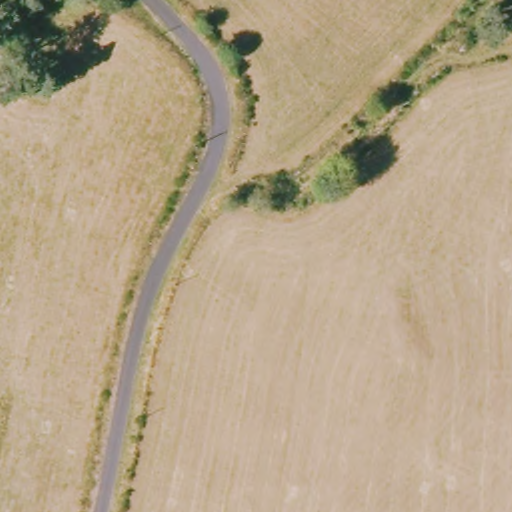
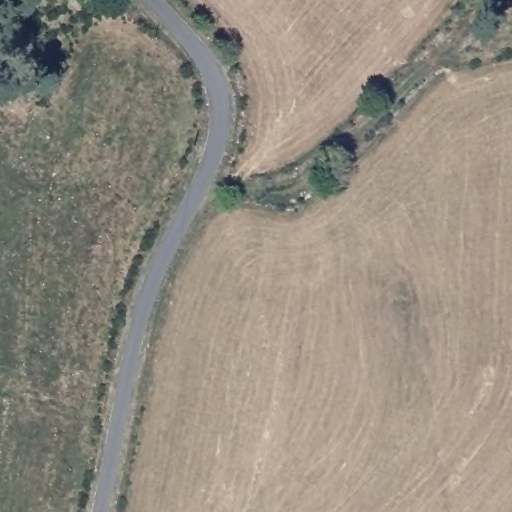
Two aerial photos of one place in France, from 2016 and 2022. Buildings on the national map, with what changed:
[]

